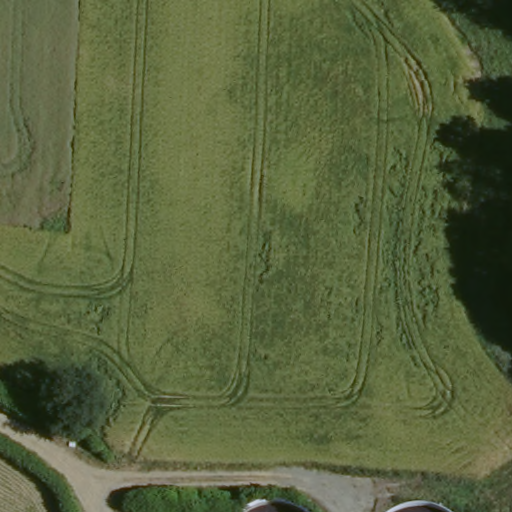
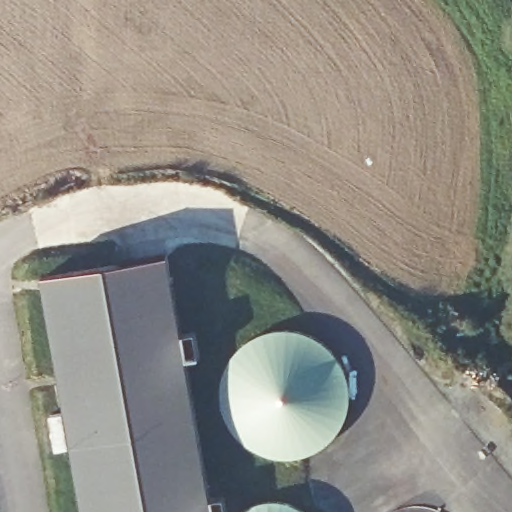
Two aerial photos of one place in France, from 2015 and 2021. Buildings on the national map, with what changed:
new [(183,331),(197,328),(202,355),(186,356),(210,499),(224,496),(226,512),(83,512),(73,446),(57,448),(51,415),(65,413),(42,275),(169,254),(183,331)]

